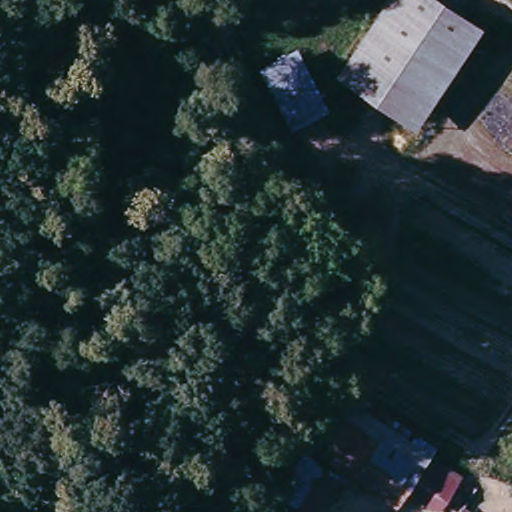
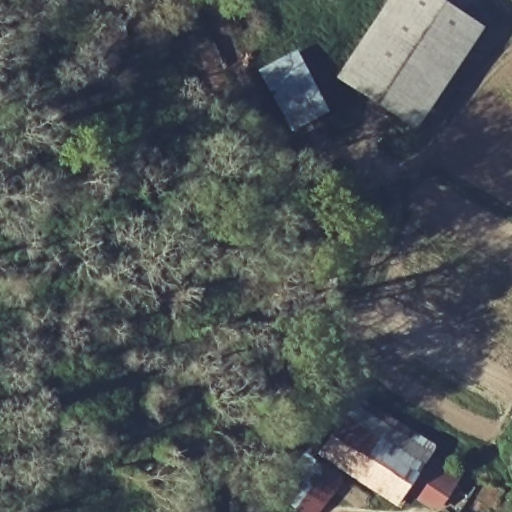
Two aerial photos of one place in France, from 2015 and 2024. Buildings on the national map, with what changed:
unchanged [(386,0),(446,0),(481,23),(416,124),(341,75),(338,72),(351,53),(386,0)]
unchanged [(266,69),(292,54),(320,107),(293,123),(266,69)]
unchanged [(457,483),(440,507),(403,482),(385,508),(335,474),(307,512),(290,512),(288,511),(320,464),(312,458),(337,417),(345,407),(388,435),(408,450),(402,460),(412,466),(419,457),(457,483)]

